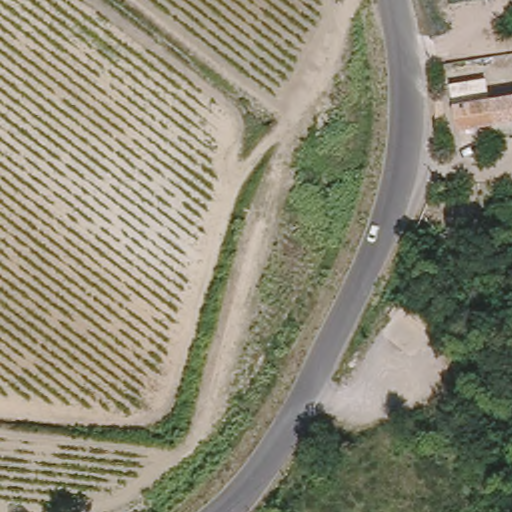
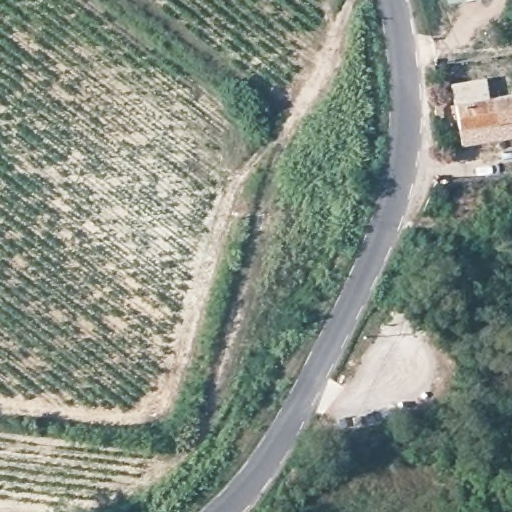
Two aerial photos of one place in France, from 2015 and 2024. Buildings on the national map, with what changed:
unchanged [(453,0),(468,0),(453,2),(453,0)]
unchanged [(477,137),(454,142),(444,99),(507,85),(512,110),(512,149),(481,155),(480,151),(477,137)]

